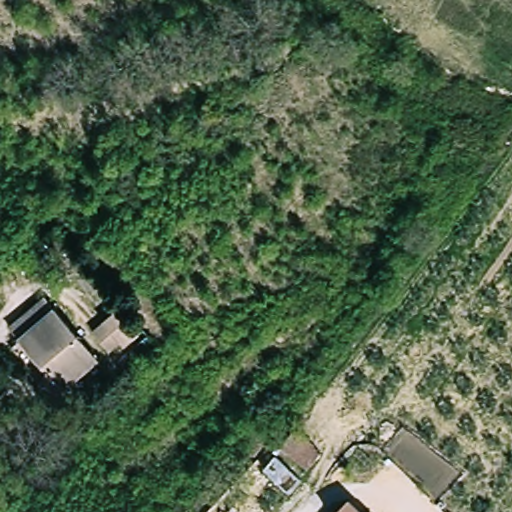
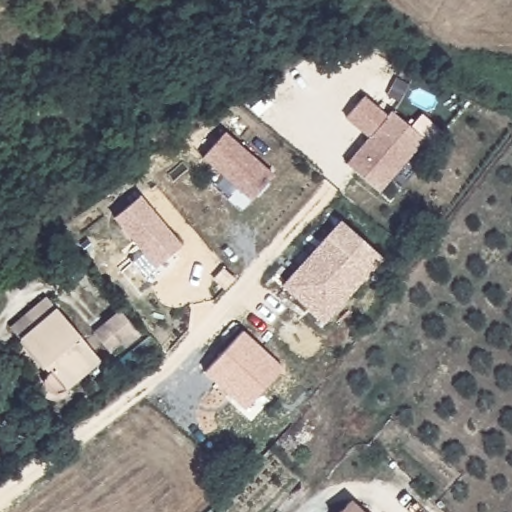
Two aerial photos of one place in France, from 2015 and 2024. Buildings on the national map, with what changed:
new [(365,100),(388,120),(392,115),(425,143),(380,195),(347,168),(371,141),(347,121),(365,100)]
new [(225,135),(273,179),(251,203),(202,160),(225,135)]
new [(140,199),(183,249),(157,270),(115,220),(140,199)]
new [(323,323),(281,286),(340,220),(382,257),(323,323)]
unchanged [(49,298),(100,362),(65,391),(62,392),(60,393),(58,394),(56,395),(54,395),(51,394),(50,393),(47,392),(46,390),(45,388),(43,386),(42,385),(42,382),(42,380),(42,377),(43,375),(44,373),(45,371),(47,370),(12,328),(49,298)]
unchanged [(122,312),(138,332),(111,355),(95,335),(122,312)]
new [(245,410),(203,372),(241,330),(283,367),(245,410)]
demolished [(327,450),(311,469),(292,458),(308,435),(327,450)]
unchanged [(355,512),(340,512),(346,505),(355,512)]

